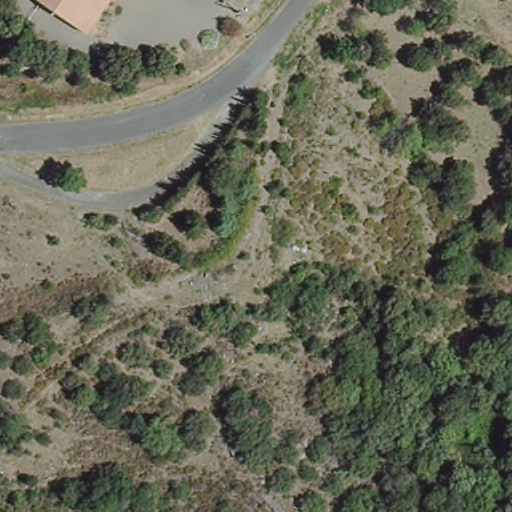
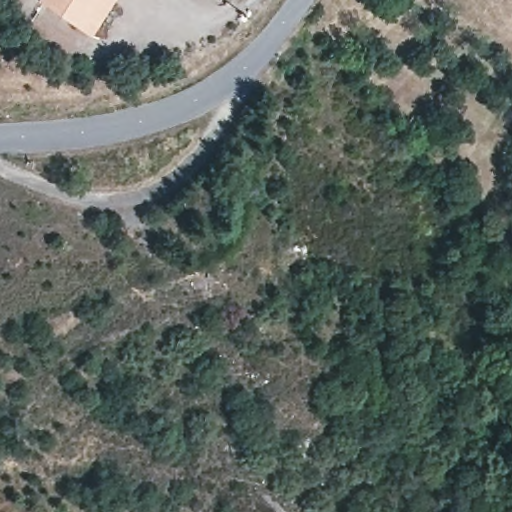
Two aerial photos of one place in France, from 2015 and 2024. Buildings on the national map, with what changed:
unchanged [(105,0),(85,31),(38,0),(105,0)]

